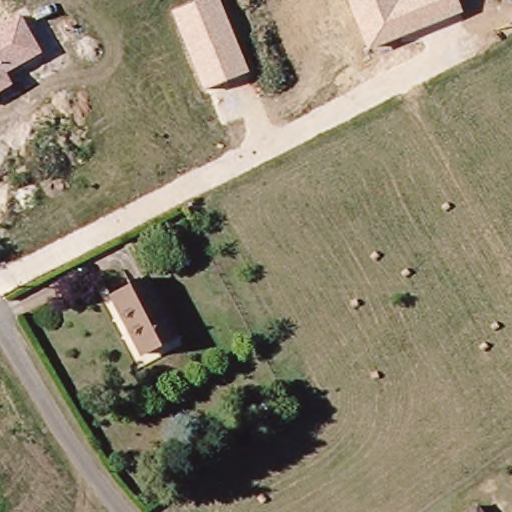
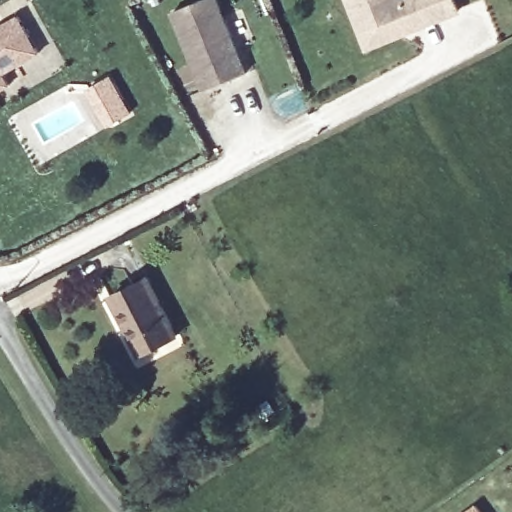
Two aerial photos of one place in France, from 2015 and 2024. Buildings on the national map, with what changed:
unchanged [(248,71),(203,90),(171,11),(197,0),(219,0),(248,71)]
unchanged [(462,13),(368,51),(347,0),(457,0),(462,13)]
unchanged [(41,53),(6,72),(13,85),(0,92),(0,27),(19,16),(41,53)]
new [(109,126),(87,89),(111,75),(133,112),(109,126)]
unchanged [(177,335),(142,353),(112,297),(148,279),(177,335)]
unchanged [(480,512),(468,512),(476,506),(480,512)]

